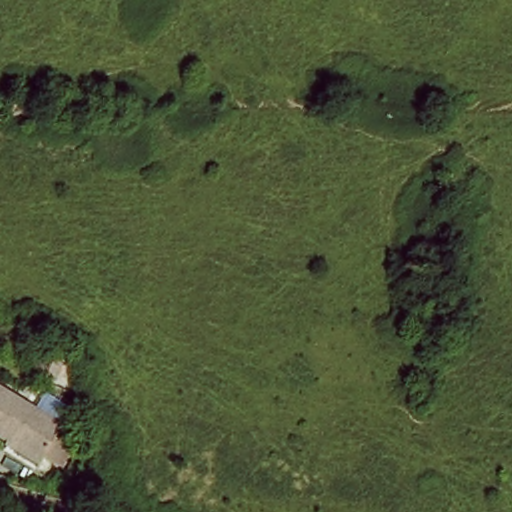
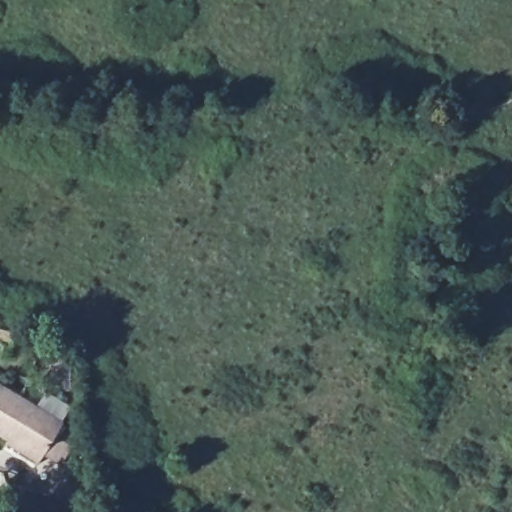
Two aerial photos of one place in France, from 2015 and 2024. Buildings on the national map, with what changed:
unchanged [(82,436),(75,455),(21,435),(20,440),(0,433),(0,392),(68,416),(63,429),(82,436)]

